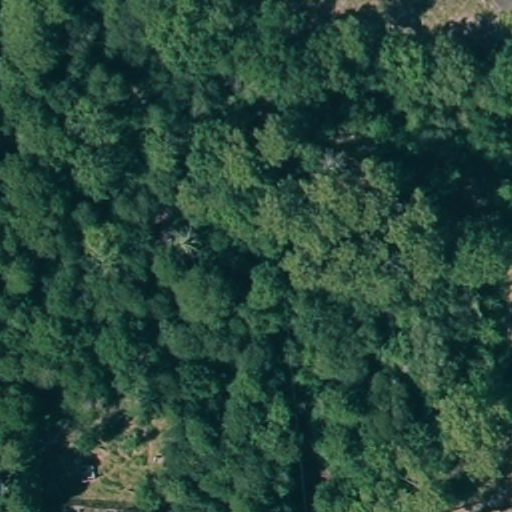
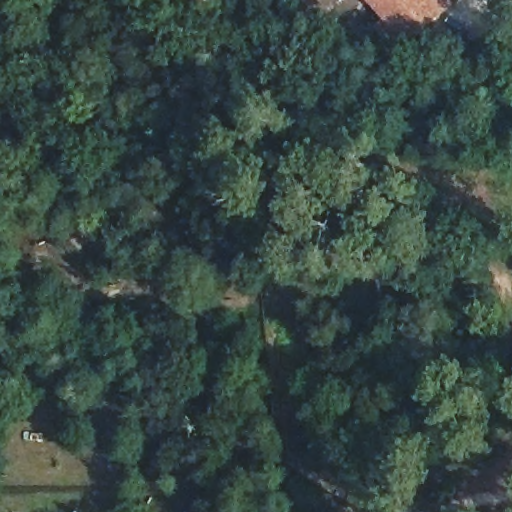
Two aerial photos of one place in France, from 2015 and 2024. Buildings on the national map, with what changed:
new [(437,19),(401,50),(383,29),(392,21),(378,5),(375,0),(445,0),(452,7),(437,19)]

